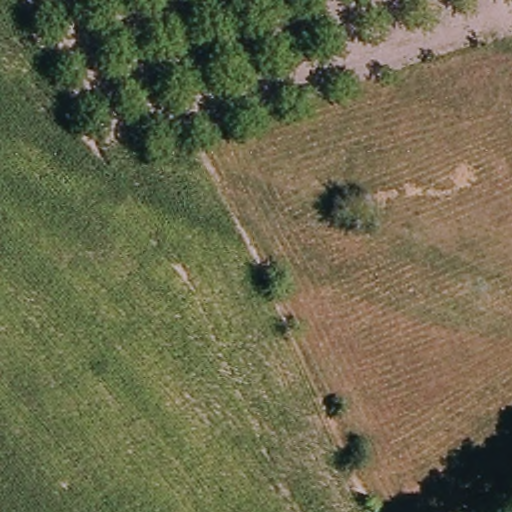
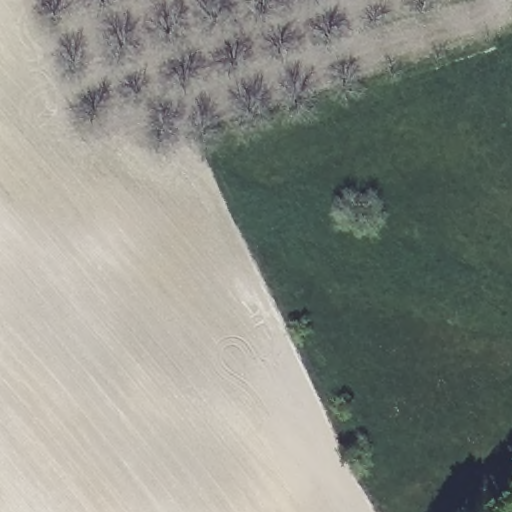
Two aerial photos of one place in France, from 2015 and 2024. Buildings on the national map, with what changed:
[]

